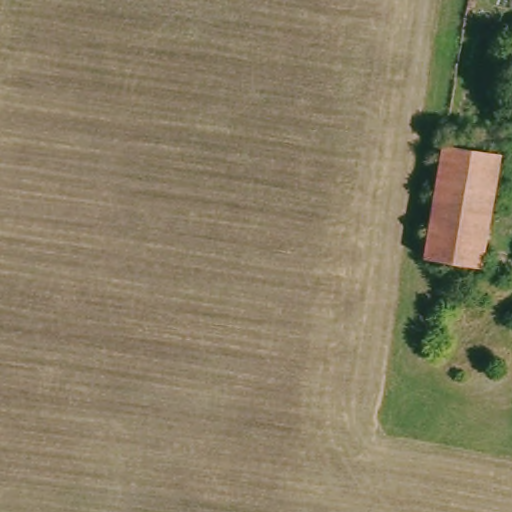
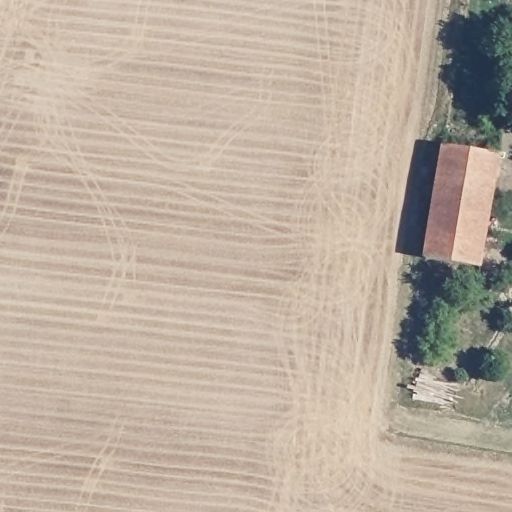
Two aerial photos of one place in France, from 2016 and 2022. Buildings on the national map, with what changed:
unchanged [(442,144),(497,153),(478,267),(423,259),(442,144)]

